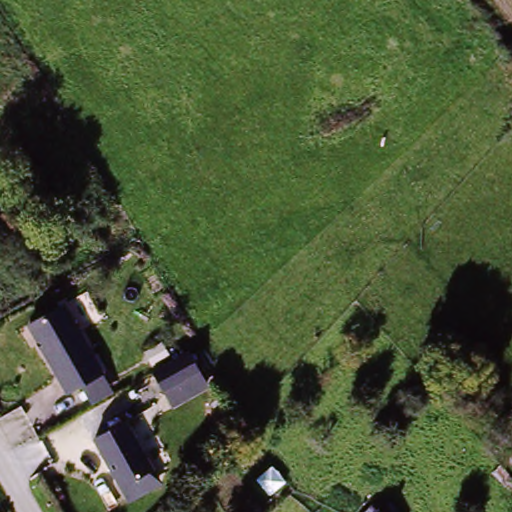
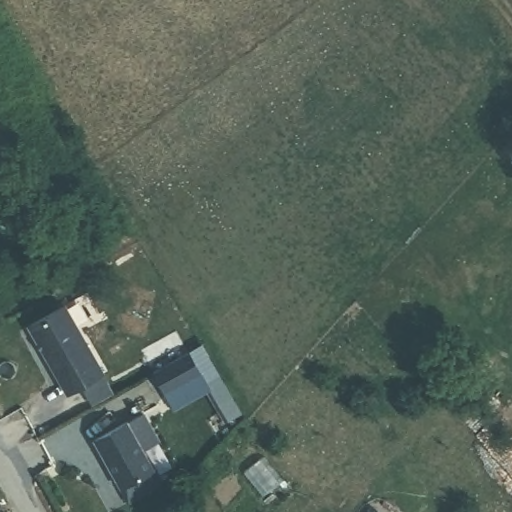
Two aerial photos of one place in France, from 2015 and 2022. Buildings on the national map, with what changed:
unchanged [(31,327),(68,305),(79,327),(43,350),(31,327)]
unchanged [(79,327),(106,375),(71,396),(43,350),(79,327)]
unchanged [(194,346),(205,375),(170,394),(155,366),(194,346)]
unchanged [(97,438),(130,419),(157,467),(125,486),(97,438)]
unchanged [(381,512),(367,512),(374,506),(381,512)]

